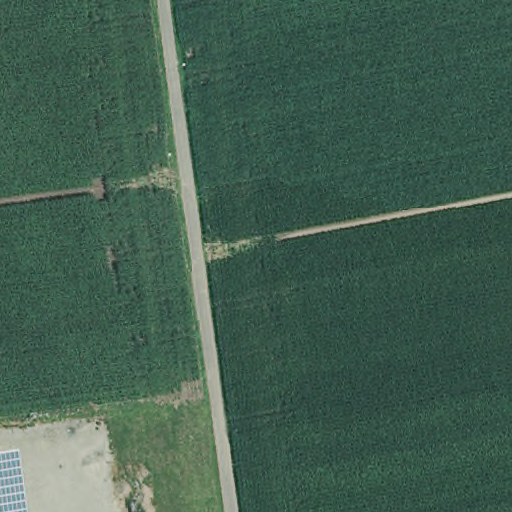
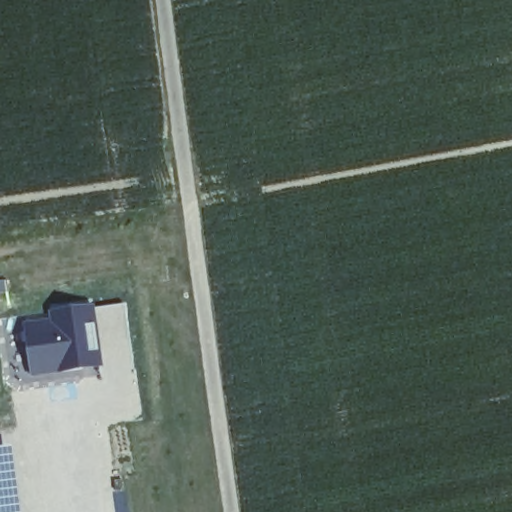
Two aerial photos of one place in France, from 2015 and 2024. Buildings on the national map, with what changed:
new [(48,316),(48,308),(94,303),(103,366),(28,377),(21,320),(48,316)]
unchanged [(13,447),(22,512),(0,512),(0,449),(13,447)]

